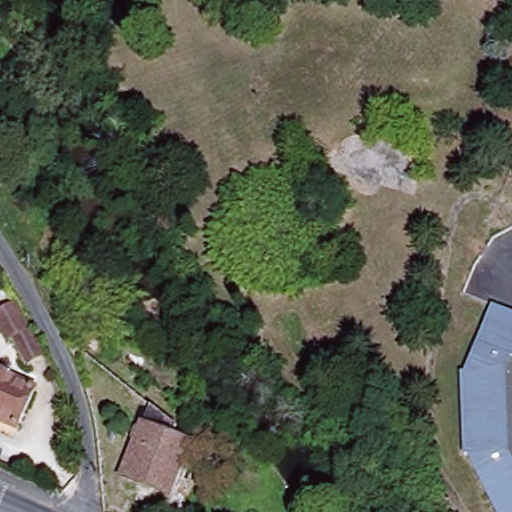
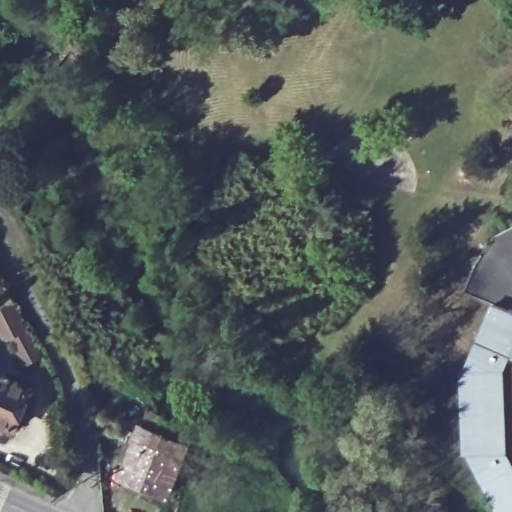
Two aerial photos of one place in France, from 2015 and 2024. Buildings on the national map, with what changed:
unchanged [(40,352),(25,359),(14,339),(2,344),(0,339),(0,314),(14,306),(40,352)]
unchanged [(467,453),(465,382),(495,307),(512,314),(512,512),(498,512),(473,452),(467,453)]
unchanged [(18,386),(0,425),(0,378),(18,386)]
unchanged [(121,478),(148,408),(176,431),(173,439),(186,446),(165,497),(121,478)]
unchanged [(425,494),(442,494),(442,512),(425,512),(425,494)]

